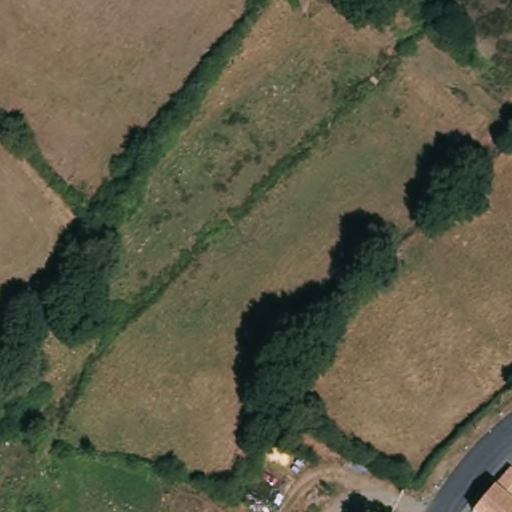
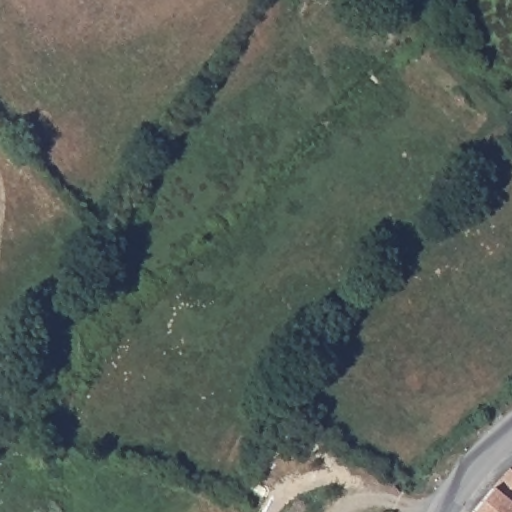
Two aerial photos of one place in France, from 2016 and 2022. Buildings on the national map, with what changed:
unchanged [(512,480),(512,512),(474,512),(506,474),(512,480)]

